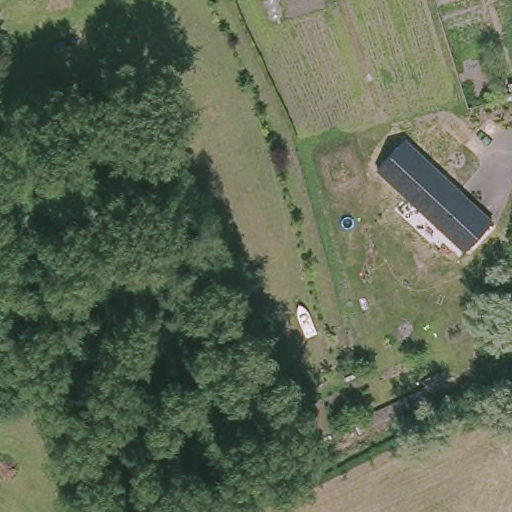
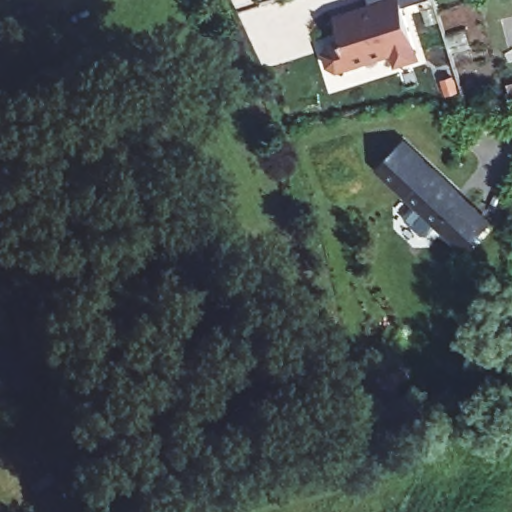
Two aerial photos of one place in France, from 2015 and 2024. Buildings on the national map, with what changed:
new [(402,7),(420,57),(397,65),(394,53),(339,72),(330,67),(326,55),(330,46),(345,41),(337,17),(371,6),(369,0),(423,0),(402,7)]
unchanged [(509,88),(512,87),(512,100),(509,88)]
unchanged [(495,220),(464,252),(377,170),(406,139),(495,220)]

